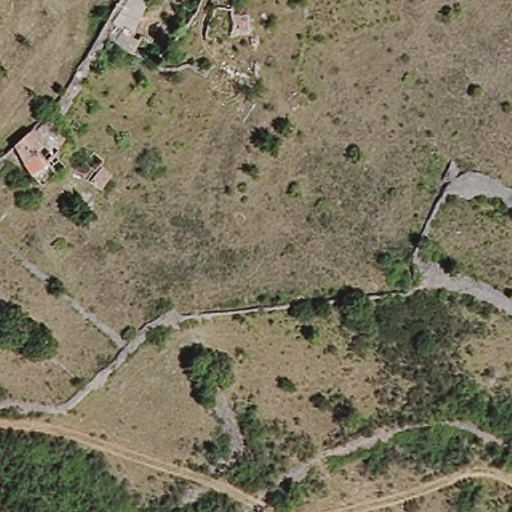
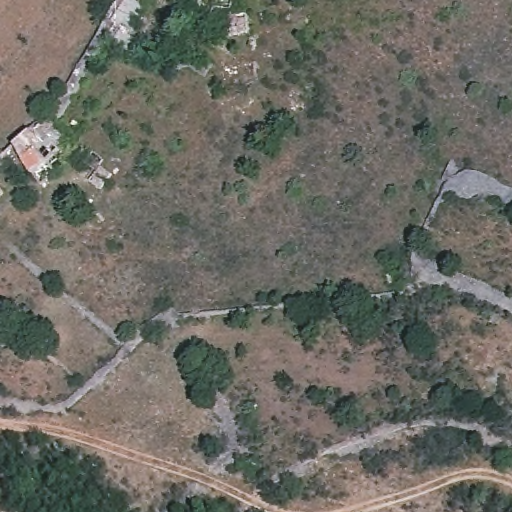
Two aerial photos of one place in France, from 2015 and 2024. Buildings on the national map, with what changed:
unchanged [(127,48),(100,34),(116,0),(145,0),(127,48)]
unchanged [(33,125),(60,175),(36,185),(8,144),(33,125)]

